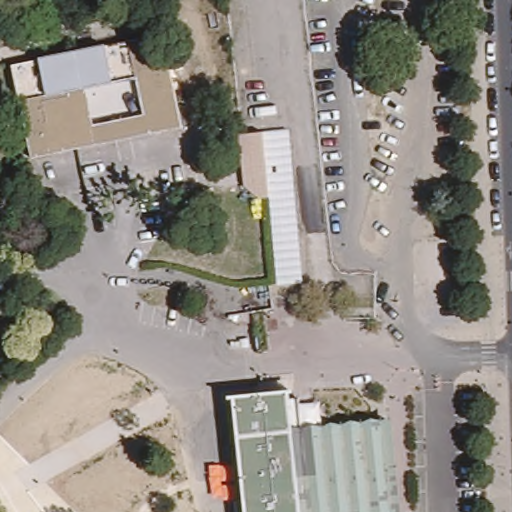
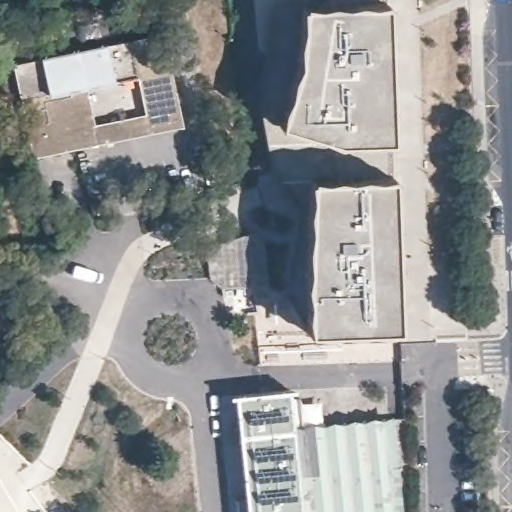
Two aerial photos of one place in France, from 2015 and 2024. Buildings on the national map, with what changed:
new [(337,141),(279,123),(298,60),(303,5),(388,3),(390,140),(337,141)]
unchanged [(167,30),(187,124),(36,155),(17,62),(167,30)]
demolished [(238,137),(290,133),(304,285),(275,287),(267,202),(258,203),(243,188),(238,137)]
new [(393,178),(397,330),(307,334),(310,180),(393,178)]
new [(216,293),(205,247),(258,235),(268,281),(216,293)]
unchanged [(266,386),(291,383),(296,423),(390,415),(397,449),(399,504),(327,512),(250,512),(238,389),(266,386)]

